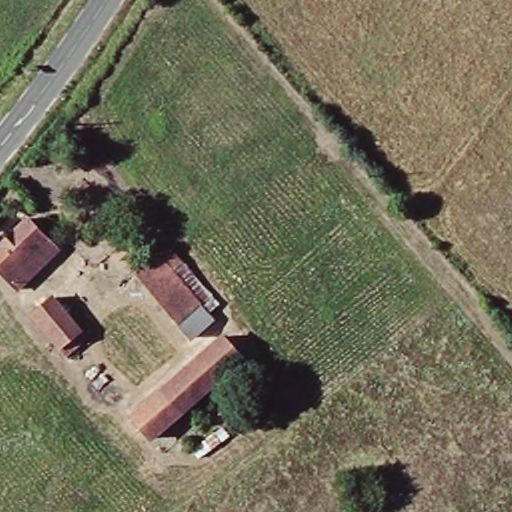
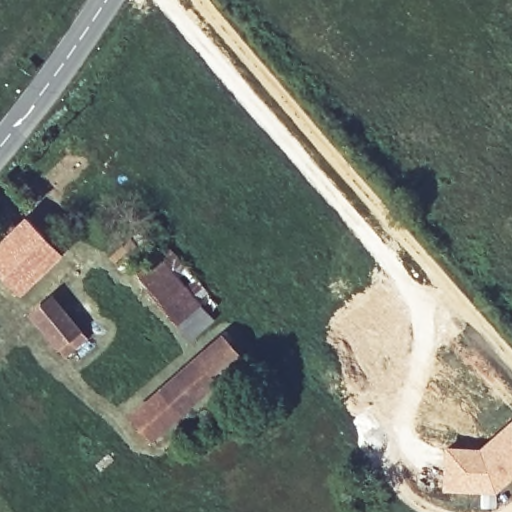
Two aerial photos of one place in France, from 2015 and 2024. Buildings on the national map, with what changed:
unchanged [(12,285),(0,272),(0,239),(25,216),(53,247),(12,285)]
unchanged [(207,311),(182,330),(171,316),(133,268),(162,245),(167,239),(213,296),(206,300),(202,304),(207,311)]
unchanged [(60,351),(29,312),(49,295),(81,334),(60,351)]
unchanged [(147,431),(129,408),(221,333),(240,355),(147,431)]
new [(480,446),(512,418),(512,480),(496,494),(495,506),(480,506),(480,493),(442,490),(445,445),(480,446)]

